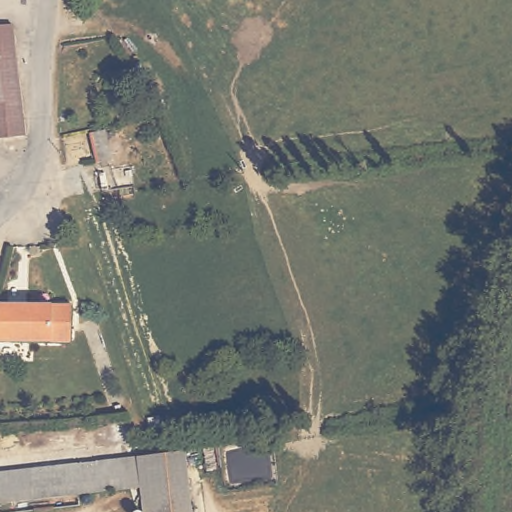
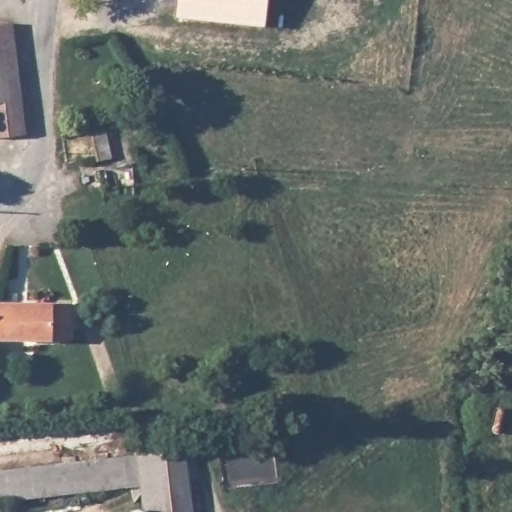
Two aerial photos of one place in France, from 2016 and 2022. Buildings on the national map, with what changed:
new [(174,4),(162,2),(163,0),(267,0),(264,28),(172,19),(174,4)]
unchanged [(0,98),(0,24),(13,22),(21,95),(0,98)]
unchanged [(0,136),(0,98),(21,95),(25,133),(0,136)]
unchanged [(99,163),(91,133),(104,130),(111,160),(99,163)]
unchanged [(0,341),(0,306),(71,307),(71,342),(0,341)]
unchanged [(186,512),(144,512),(141,491),(0,505),(0,473),(180,453),(186,512)]

